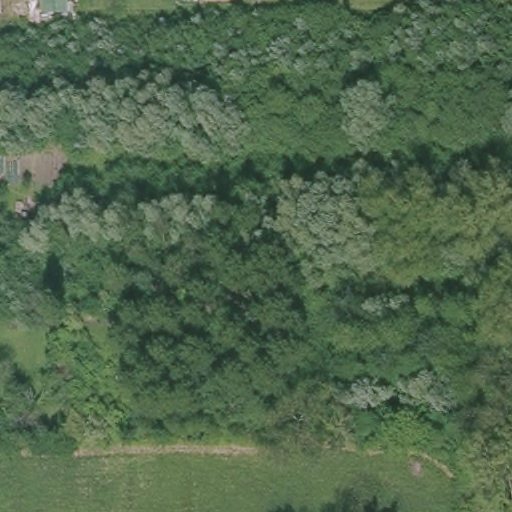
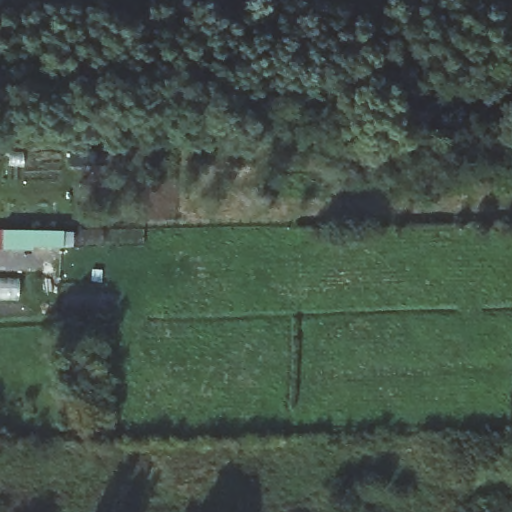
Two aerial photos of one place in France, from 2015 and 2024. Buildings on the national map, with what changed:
new [(34,249),(34,252),(0,251),(0,231),(63,232),(63,250),(34,249)]

